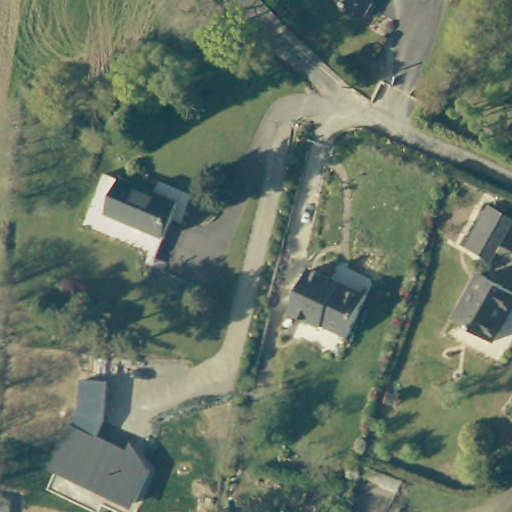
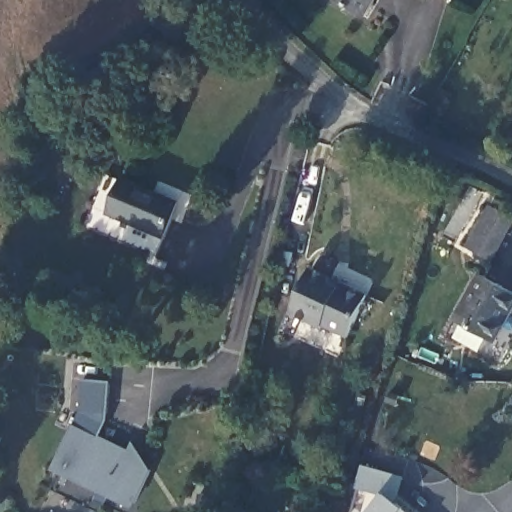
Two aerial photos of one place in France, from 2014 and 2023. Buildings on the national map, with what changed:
unchanged [(329,0),(373,0),(358,24),(326,5),(329,0)]
unchanged [(444,0),(449,0),(447,2),(444,0)]
unchanged [(116,171),(186,204),(164,256),(92,224),(116,171)]
unchanged [(462,253),(483,214),(508,227),(487,266),(462,253)]
unchanged [(348,292),(351,288),(371,297),(352,340),(326,328),(325,330),(294,316),(314,271),(336,281),(333,286),(348,292)]
unchanged [(507,338),(500,348),(488,341),(486,345),(447,323),(472,280),(512,302),(512,329),(507,338)]
unchanged [(52,470),(80,416),(83,380),(112,382),(109,421),(102,435),(129,451),(134,442),(154,472),(134,510),(52,470)]
new [(397,503),(405,508),(409,512),(369,512),(381,496),(355,488),(362,465),(406,478),(397,503)]

